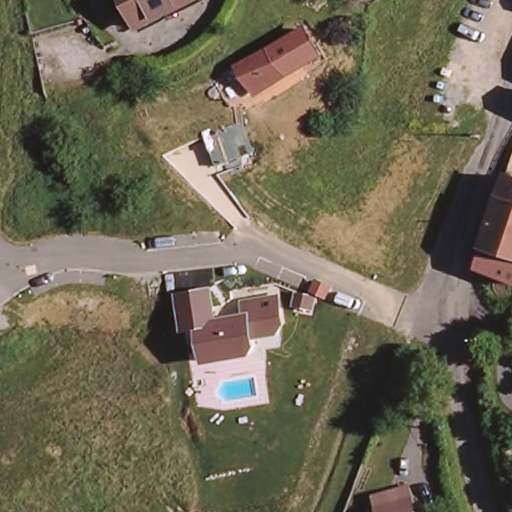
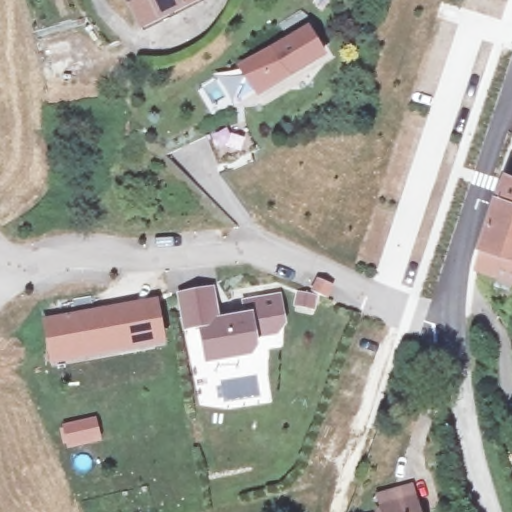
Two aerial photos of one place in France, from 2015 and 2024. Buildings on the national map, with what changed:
unchanged [(137,25),(125,0),(193,0),(137,25)]
unchanged [(291,77),(259,97),(233,66),(269,49),(307,28),(326,57),(291,77)]
unchanged [(204,135),(244,122),(256,153),(217,166),(204,135)]
unchanged [(483,252),(481,241),(482,239),(512,178),(512,267),(498,260),(483,252)]
unchanged [(286,333),(256,338),(258,350),(253,356),(210,364),(203,329),(190,331),(185,300),(214,296),(219,323),(250,318),(248,304),(280,299),(286,333)]
new [(166,345),(49,364),(42,319),(158,298),(166,345)]
unchanged [(383,501),(379,488),(412,478),(423,512),(378,512),(375,504),(383,501)]

